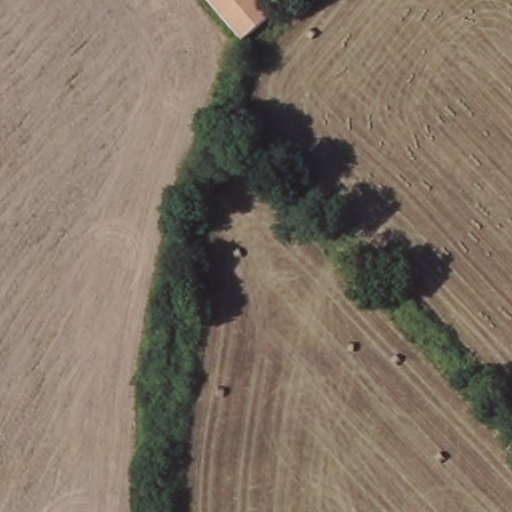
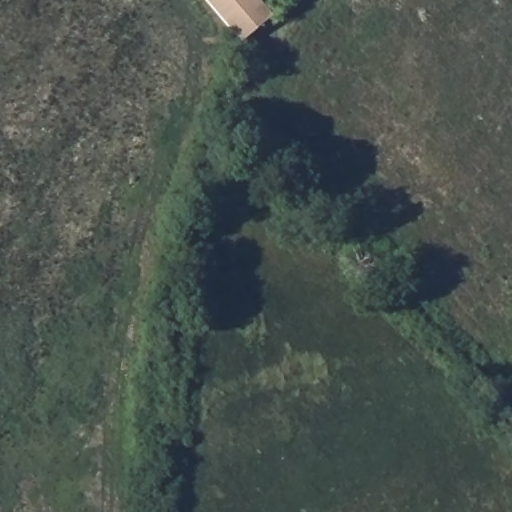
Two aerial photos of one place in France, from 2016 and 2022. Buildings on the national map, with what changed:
unchanged [(211,0),(258,0),(259,0),(273,15),(256,34),(250,39),(236,27),(226,15),(222,11),(211,0)]

